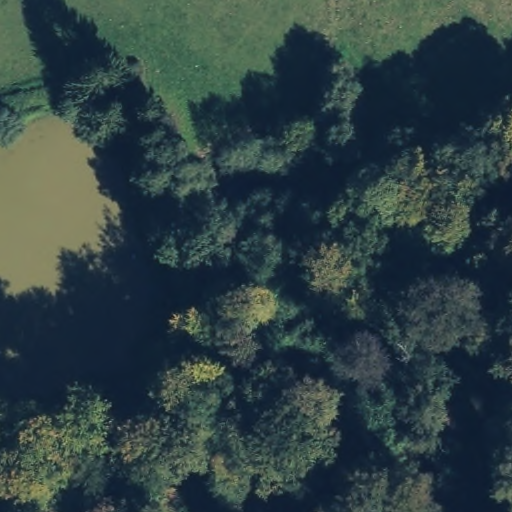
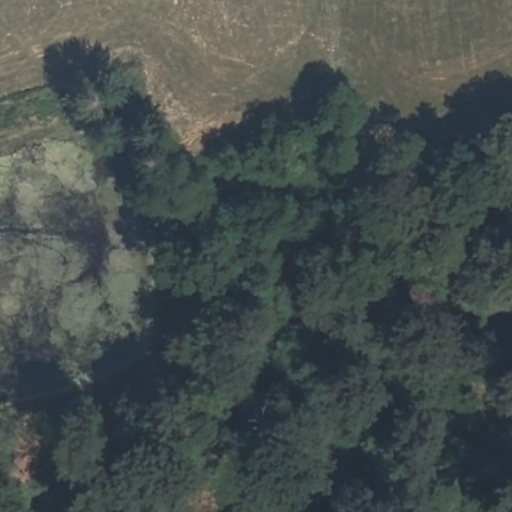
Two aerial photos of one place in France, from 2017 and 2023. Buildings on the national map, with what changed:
unchanged [(111,392),(114,403),(95,409),(92,399),(111,392)]

